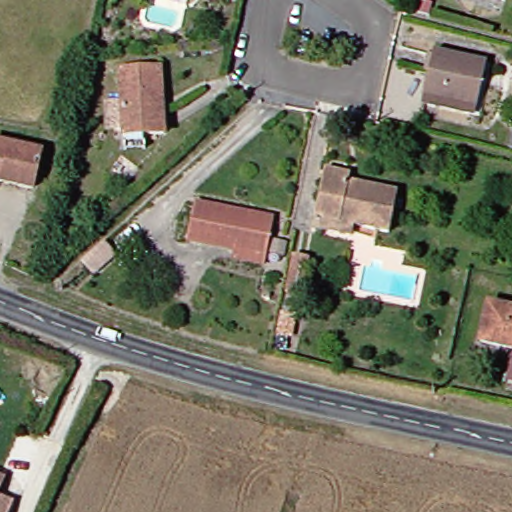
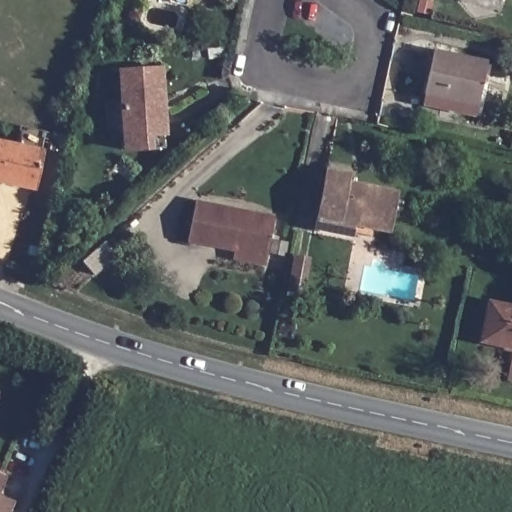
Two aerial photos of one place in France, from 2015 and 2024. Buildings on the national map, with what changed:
unchanged [(485,116),(430,104),(442,51),(495,63),(485,116)]
unchanged [(177,133),(137,135),(136,127),(120,129),(118,102),(134,101),(132,70),(173,68),(177,133)]
unchanged [(0,178),(0,159),(4,140),(54,150),(45,188),(0,178)]
unchanged [(396,225),(360,218),(358,228),(321,221),(333,162),(355,166),(355,174),(403,184),(396,225)]
unchanged [(237,260),(240,250),(195,240),(204,201),(281,216),(274,257),(272,267),(237,260)]
unchanged [(106,244),(117,257),(97,276),(85,263),(106,244)]
unchanged [(307,288),(295,285),(302,246),(315,249),(307,288)]
unchanged [(483,339),(490,301),(512,306),(512,345),(483,339)]
unchanged [(509,379),(512,353),(512,380),(509,379)]
unchanged [(5,502),(23,510),(22,512),(0,512),(0,473),(15,480),(5,502)]

